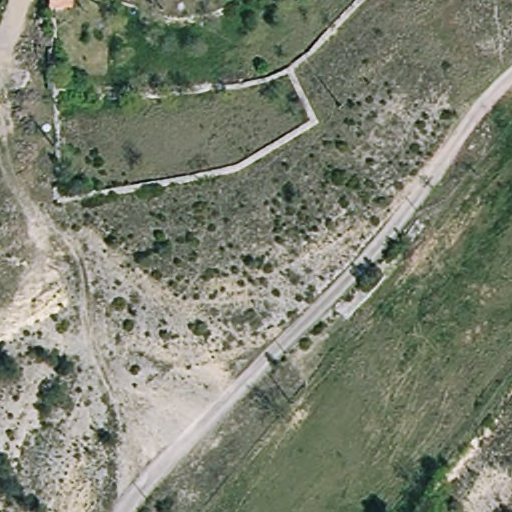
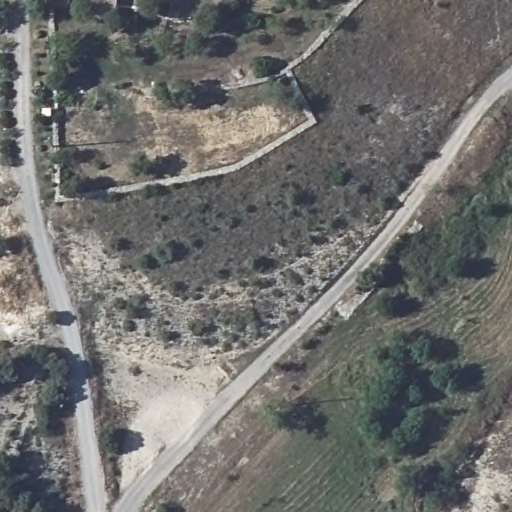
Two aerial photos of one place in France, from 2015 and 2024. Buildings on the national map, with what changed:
unchanged [(49,0),(69,0),(70,6),(49,9),(49,0)]

